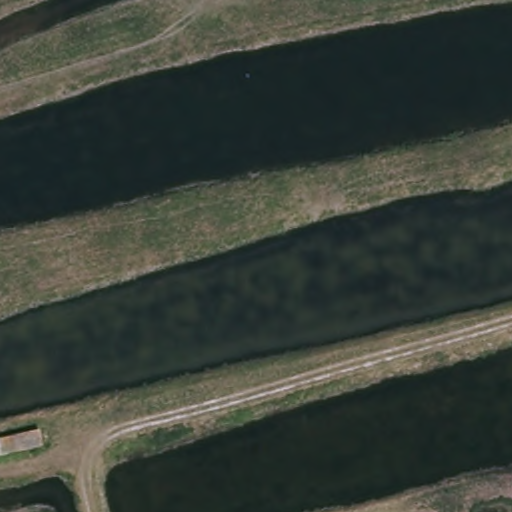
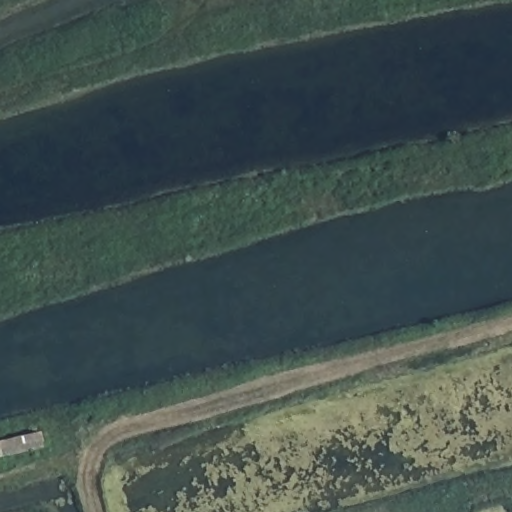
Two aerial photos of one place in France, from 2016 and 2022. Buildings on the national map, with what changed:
unchanged [(44,447),(0,458),(0,441),(41,433),(44,447)]

